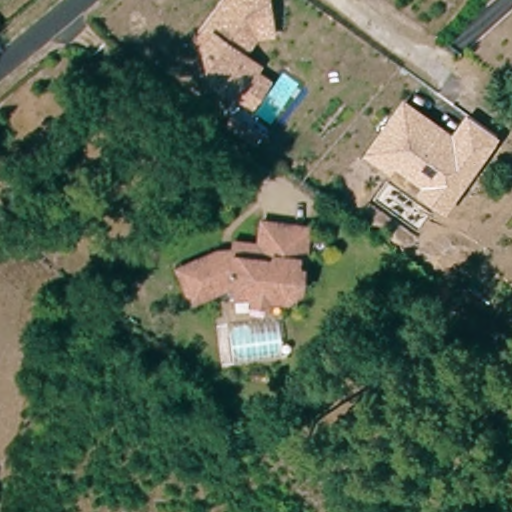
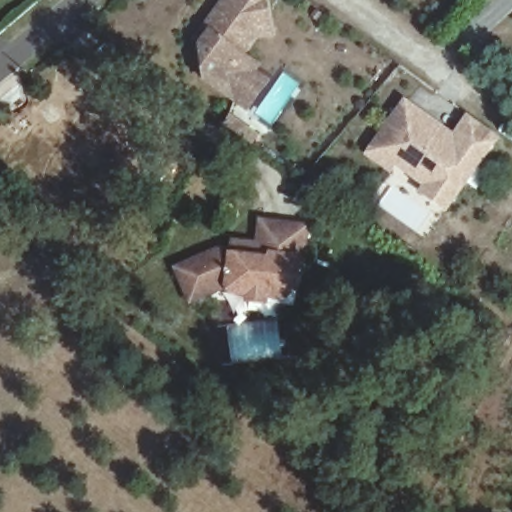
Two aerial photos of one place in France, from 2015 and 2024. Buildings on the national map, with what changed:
unchanged [(258,39),(250,54),(265,65),(260,72),(272,80),(247,113),(203,83),(195,38),(222,0),(269,0),(276,36),(258,39)]
unchanged [(449,213),(420,193),(424,187),(397,167),(392,173),(366,155),(405,99),(452,133),(467,114),(502,138),(449,213)]
unchanged [(283,297),(217,292),(190,304),(170,273),(207,253),(231,254),(231,238),(256,239),(256,220),(311,224),(310,256),(306,299),(283,297)]

